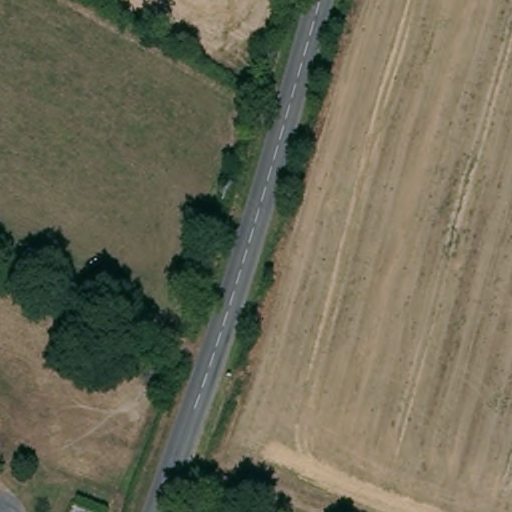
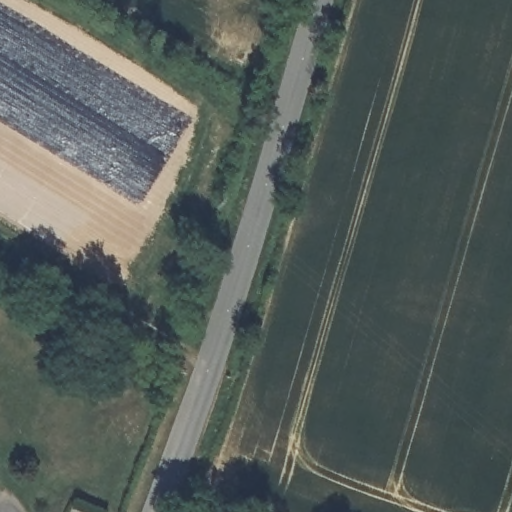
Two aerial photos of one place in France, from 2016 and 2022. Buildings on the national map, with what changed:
unchanged [(134,366),(150,375),(144,383),(130,375),(134,366)]

